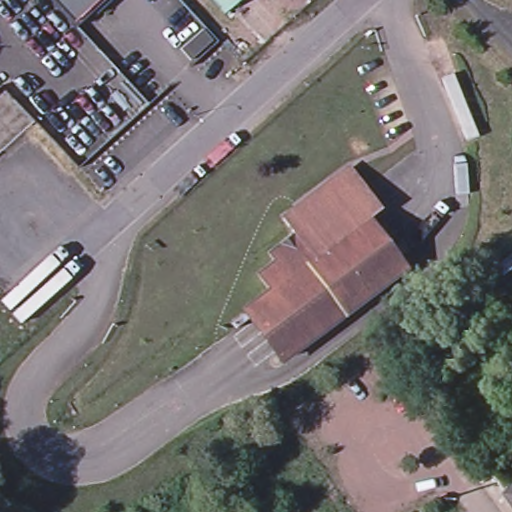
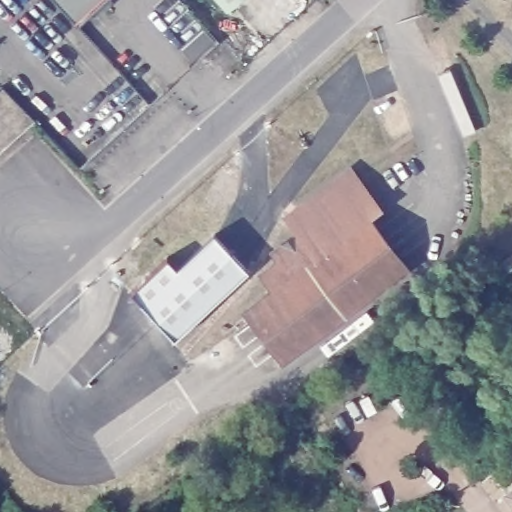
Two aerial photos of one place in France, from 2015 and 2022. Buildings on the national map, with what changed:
unchanged [(56,0),(101,0),(76,22),(56,0)]
unchanged [(214,0),(238,0),(225,12),(214,0)]
unchanged [(271,290),(259,273),(276,261),(271,252),(295,234),(284,219),(291,214),(351,169),(380,209),(367,219),(404,268),(354,305),(283,358),(246,310),(271,290)]
new [(174,340),(131,291),(167,258),(176,268),(214,234),(248,271),(174,340)]
unchanged [(504,495),(512,489),(512,506),(504,495)]

